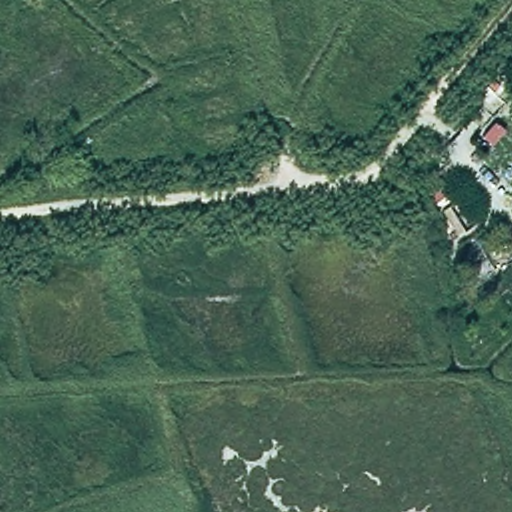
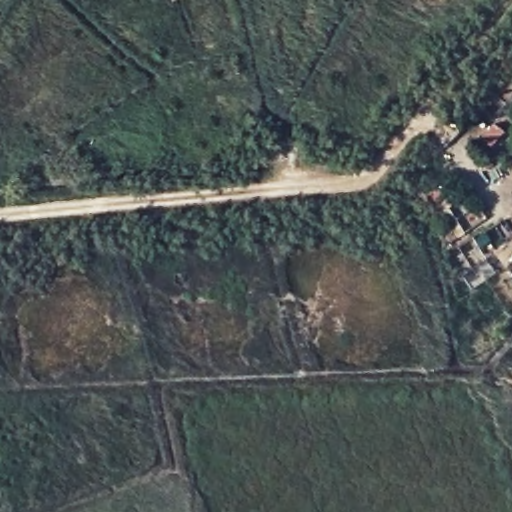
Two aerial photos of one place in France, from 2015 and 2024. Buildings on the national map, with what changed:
unchanged [(494,276),(476,281),(471,265),(490,260),(494,276)]

